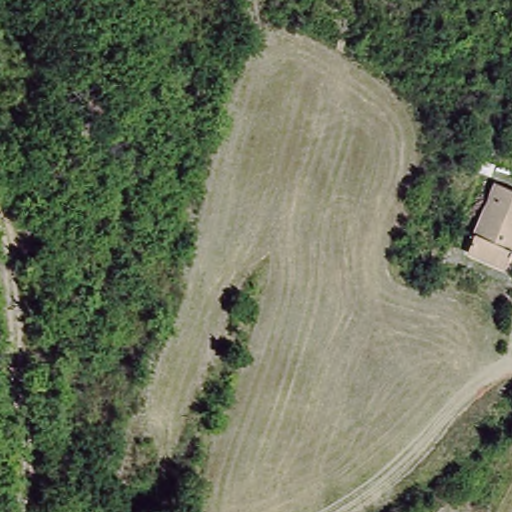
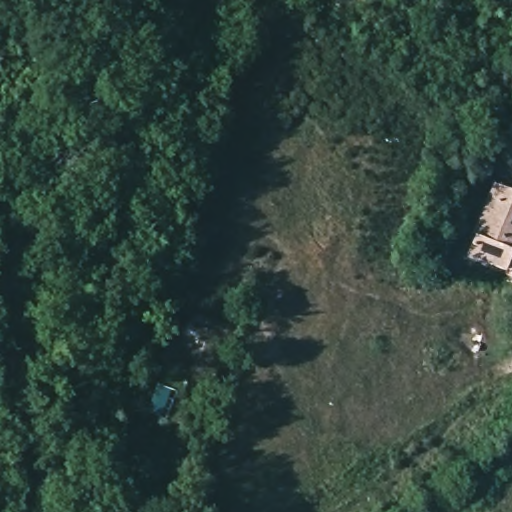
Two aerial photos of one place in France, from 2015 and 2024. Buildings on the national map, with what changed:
unchanged [(512,255),(506,267),(465,251),(499,184),(512,189),(512,255)]

